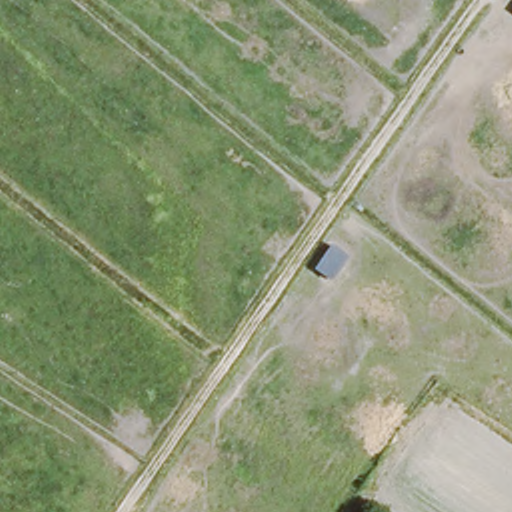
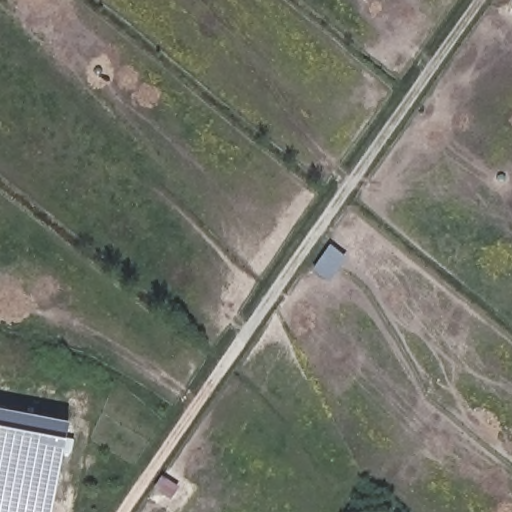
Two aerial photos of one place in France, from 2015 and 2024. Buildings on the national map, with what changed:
new [(334,245),(349,256),(331,282),(317,270),(334,245)]
new [(51,512),(0,512),(0,409),(68,422),(51,512)]

